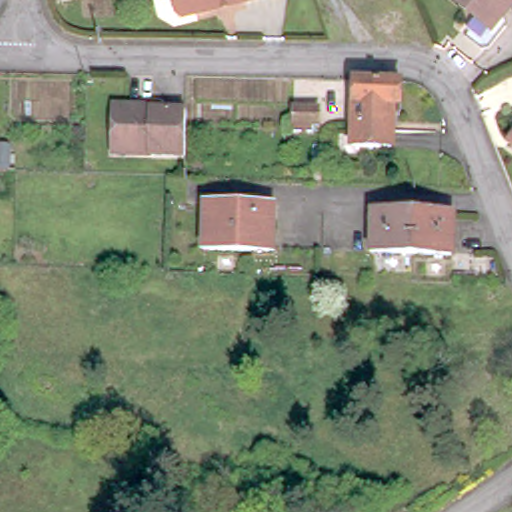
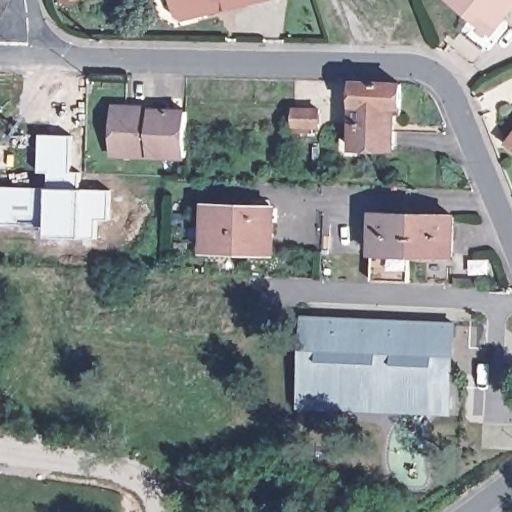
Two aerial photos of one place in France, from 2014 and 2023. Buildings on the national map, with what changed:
unchanged [(182,17),(175,10),(173,0),(260,0),(252,2),(207,11),(182,17)]
unchanged [(453,0),(510,0),(487,27),(453,0)]
unchanged [(353,148),(355,82),(402,83),(401,106),(401,116),(394,116),(393,149),(353,148)]
unchanged [(117,140),(118,105),(118,99),(155,100),(155,106),(188,108),(187,152),(155,150),(117,148),(117,140)]
unchanged [(295,132),(295,126),(295,109),(320,109),(320,126),(313,126),(313,132),(295,132)]
unchanged [(505,138),(512,128),(512,144),(505,138)]
unchanged [(0,147),(10,147),(10,156),(0,156),(0,147)]
unchanged [(206,201),(273,202),(272,248),(205,246),(206,201)]
unchanged [(373,253),(373,213),(454,215),(452,256),(373,253)]
new [(301,315),(456,322),(448,415),(326,409),(327,403),(423,408),(424,382),(448,383),(449,365),(445,366),(447,327),(452,327),(453,325),(301,318),(301,315)]
new [(297,409),(301,318),(453,325),(452,327),(447,327),(445,366),(449,365),(448,383),(424,382),(423,408),(327,403),(326,409),(325,410),(298,408),(297,409)]

